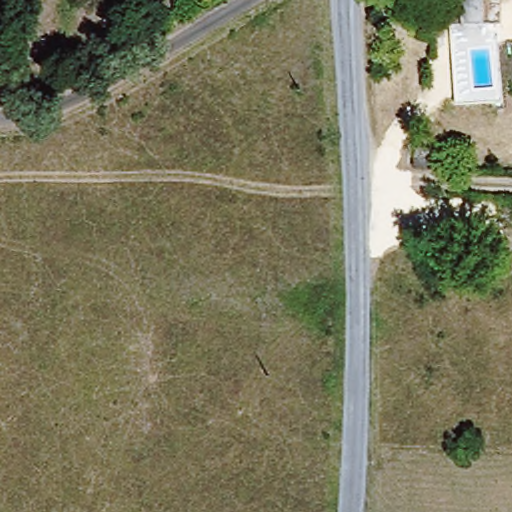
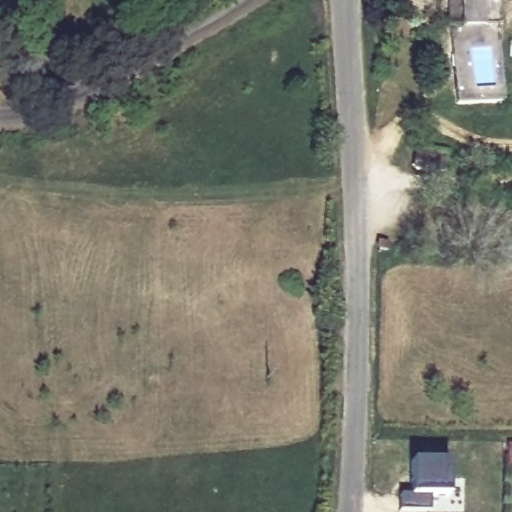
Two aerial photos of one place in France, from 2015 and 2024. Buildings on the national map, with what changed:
unchanged [(502,27),(463,27),(463,0),(502,0),(502,27)]
unchanged [(415,149),(449,152),(447,170),(413,167),(415,149)]
new [(450,496),(429,496),(429,511),(397,510),(398,491),(411,491),(411,462),(448,462),(450,496)]

